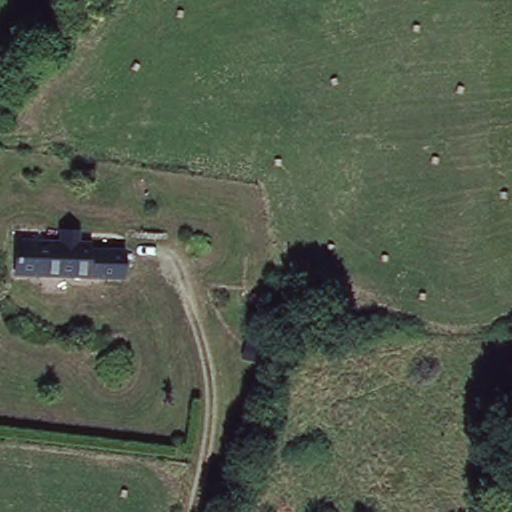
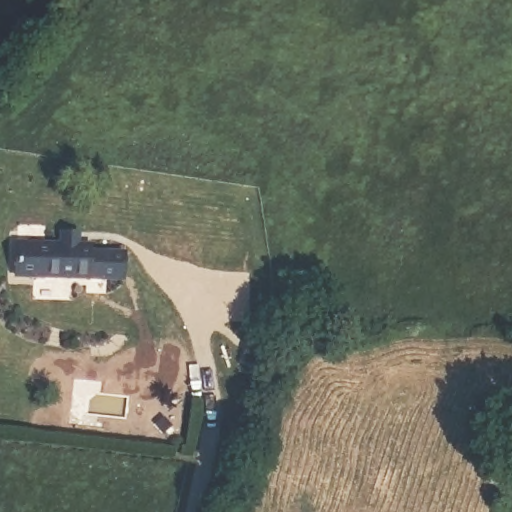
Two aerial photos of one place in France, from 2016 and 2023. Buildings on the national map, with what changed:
unchanged [(23,276),(22,243),(65,241),(65,229),(83,229),(83,240),(96,240),(96,246),(129,245),(130,272),(23,276)]
unchanged [(269,339),(265,359),(245,356),(250,337),(269,339)]

